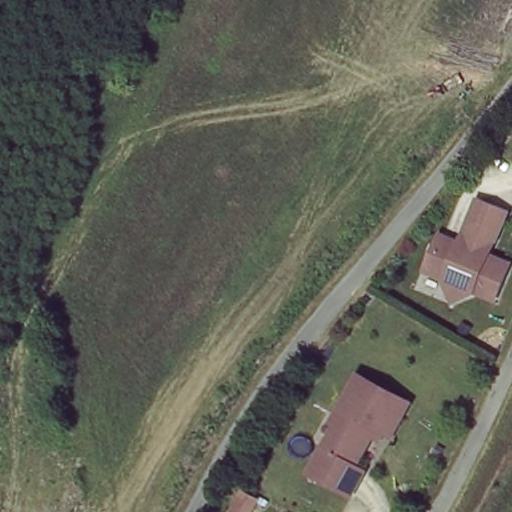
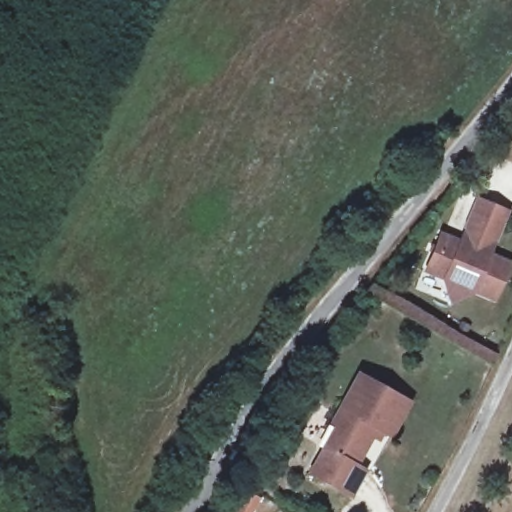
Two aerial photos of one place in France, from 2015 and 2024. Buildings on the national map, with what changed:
unchanged [(442,275),(424,267),(439,233),(458,241),(476,198),(504,209),(485,252),(507,261),(492,295),(472,287),(450,297),(442,275)]
unchanged [(344,493),(322,480),(304,470),(332,423),(327,420),(355,373),(404,402),(385,435),(370,427),(349,464),(358,469),(344,493)]

